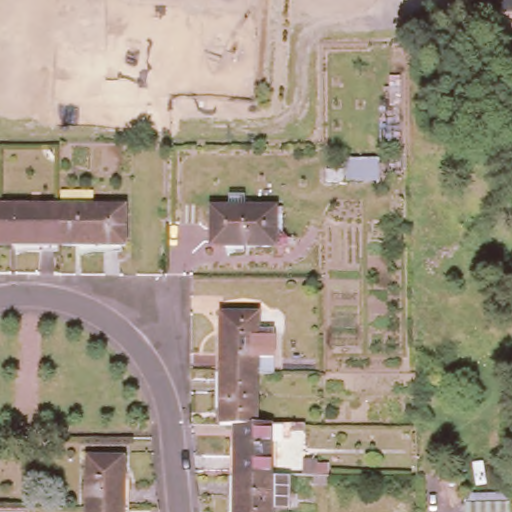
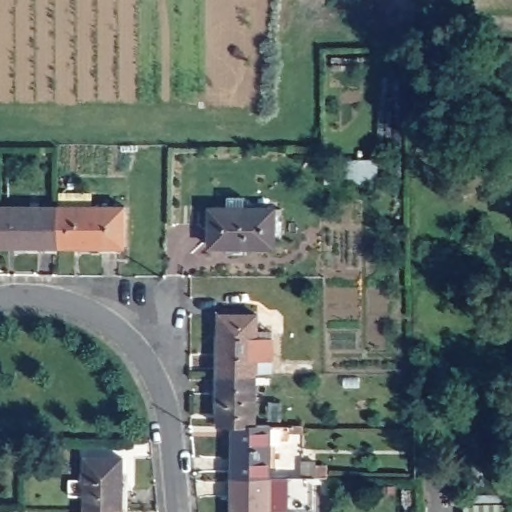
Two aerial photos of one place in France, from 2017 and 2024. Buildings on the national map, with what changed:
unchanged [(62,245),(0,245),(0,206),(62,206),(62,194),(94,194),(94,206),(127,207),(127,245),(62,245)]
unchanged [(278,210),(278,247),(214,247),(214,210),(278,210)]
unchanged [(219,372),(220,315),(257,315),(256,373),(219,372)]
unchanged [(218,426),(219,372),(256,373),(256,427),(233,427),(218,426)]
unchanged [(232,477),(233,427),(256,427),(271,427),(269,477),(232,477)]
unchanged [(126,457),(126,508),(89,508),(89,457),(126,457)]
unchanged [(271,512),(232,512),(232,477),(269,477),(271,477),(271,512)]
unchanged [(510,512),(468,512),(468,501),(510,500),(510,512)]
unchanged [(89,512),(89,508),(126,508),(126,512),(89,512)]

